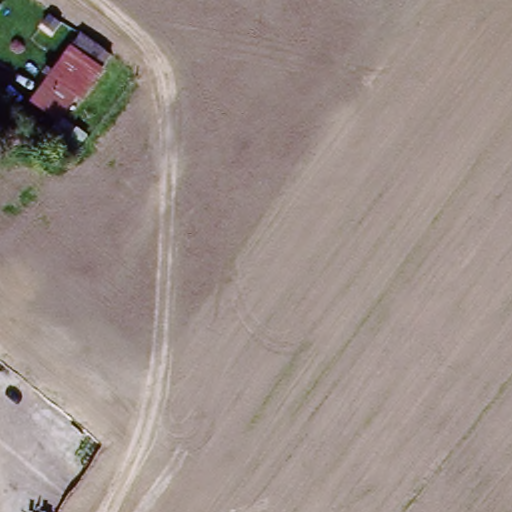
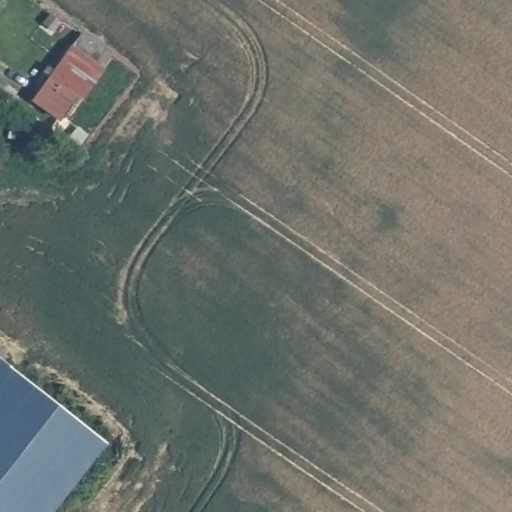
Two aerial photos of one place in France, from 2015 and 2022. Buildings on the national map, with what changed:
unchanged [(107,65),(85,95),(76,89),(56,116),(36,97),(76,43),(107,65)]
new [(99,439),(42,512),(0,512),(0,362),(1,362),(99,439)]

